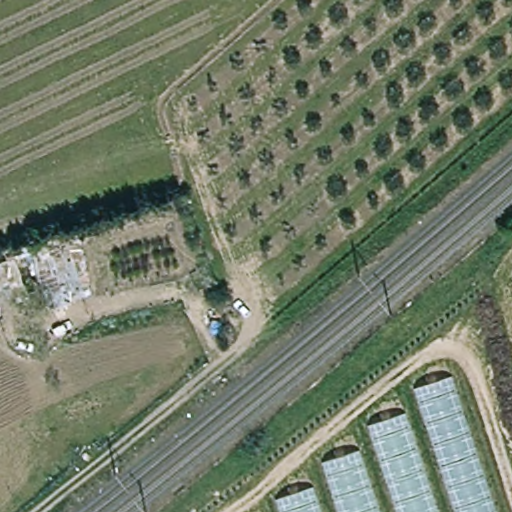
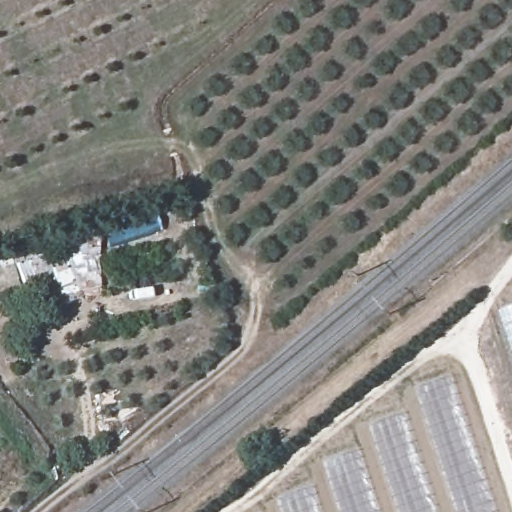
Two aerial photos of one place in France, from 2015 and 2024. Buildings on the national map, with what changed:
unchanged [(43,310),(24,247),(65,235),(79,271),(82,300),(43,310)]
new [(500,310),(512,306),(512,347),(500,310)]
unchanged [(451,373),(497,512),(272,512),(451,373)]

